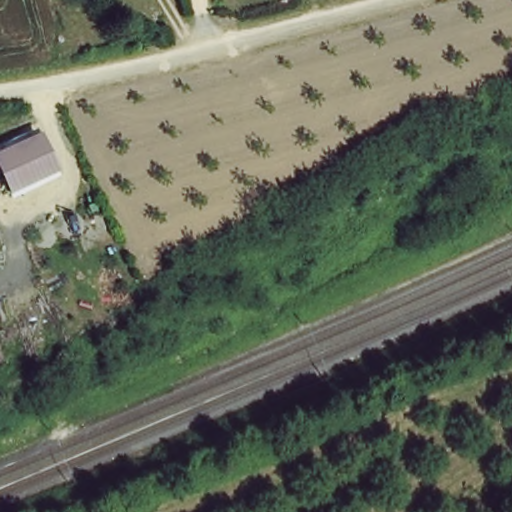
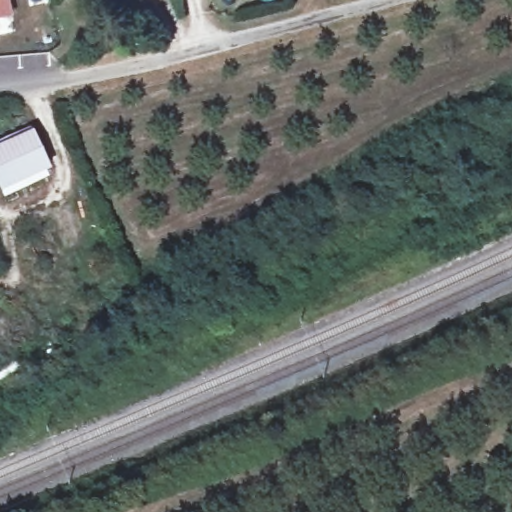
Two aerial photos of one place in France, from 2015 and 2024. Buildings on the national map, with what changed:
new [(0,19),(0,0),(11,0),(15,16),(0,19)]
unchanged [(0,175),(0,140),(19,132),(40,184),(34,186),(8,196),(0,175)]

